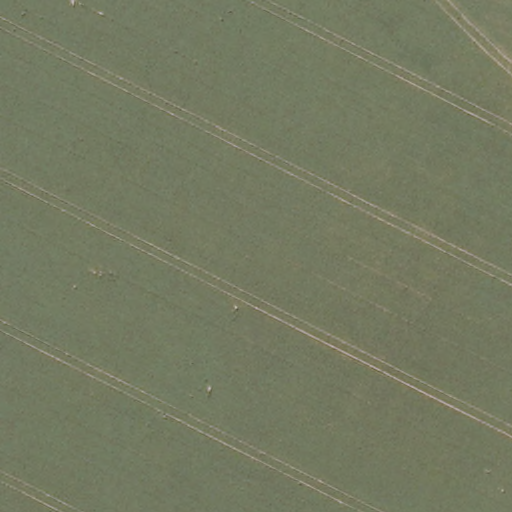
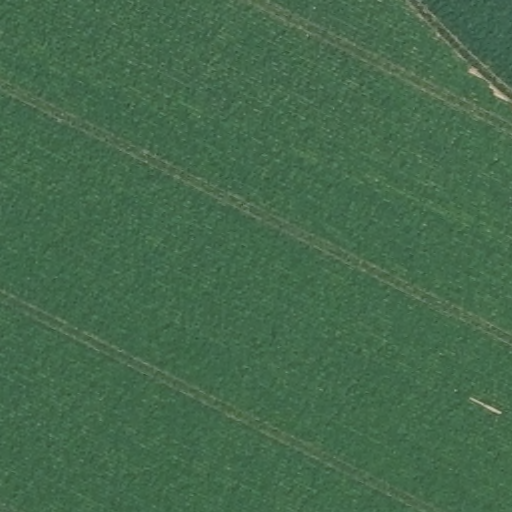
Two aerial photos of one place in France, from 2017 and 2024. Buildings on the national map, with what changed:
[]

